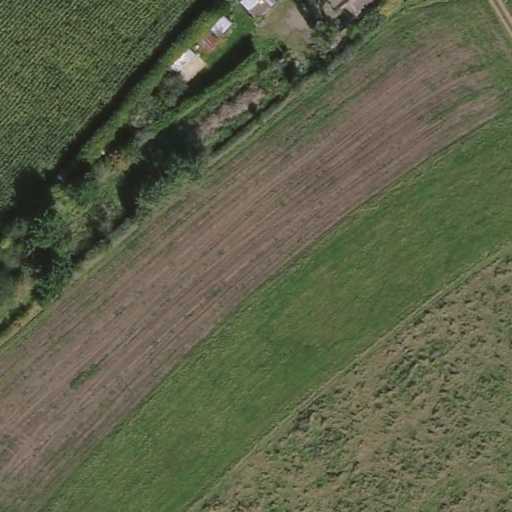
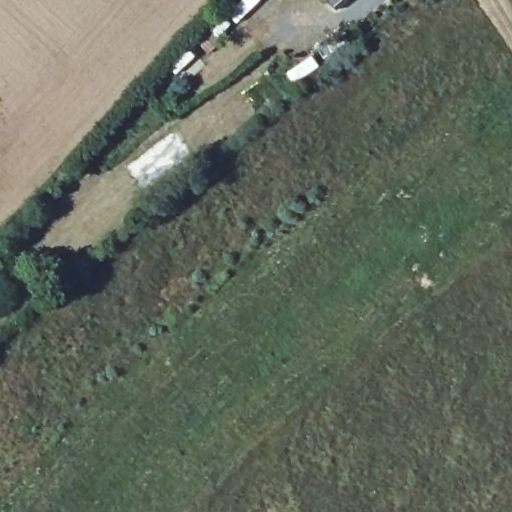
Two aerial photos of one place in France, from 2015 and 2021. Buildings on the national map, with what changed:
unchanged [(345,3),(342,0),(348,0),(345,3)]

